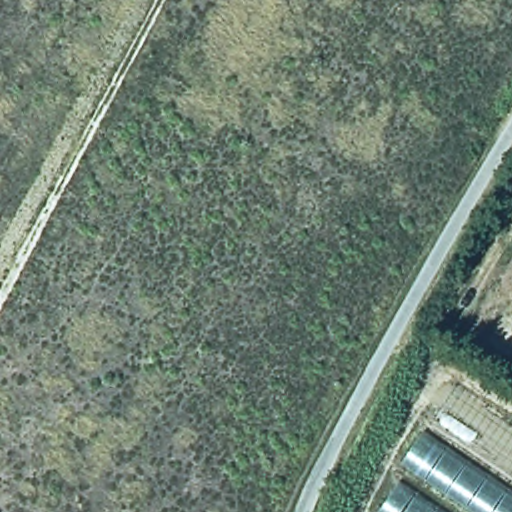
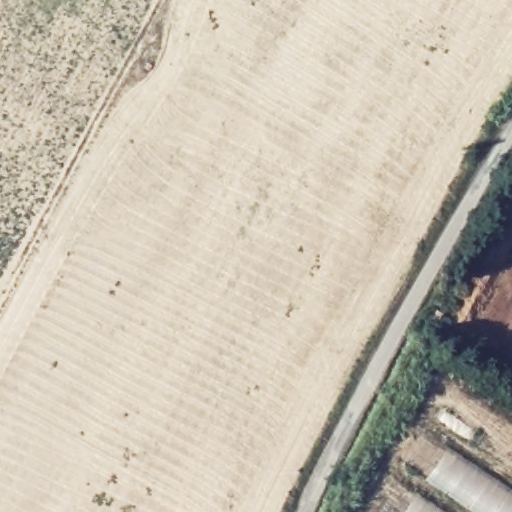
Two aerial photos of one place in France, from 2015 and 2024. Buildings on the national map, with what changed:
unchanged [(426,430),(512,487),(512,512),(382,512),(403,463),(426,430)]

